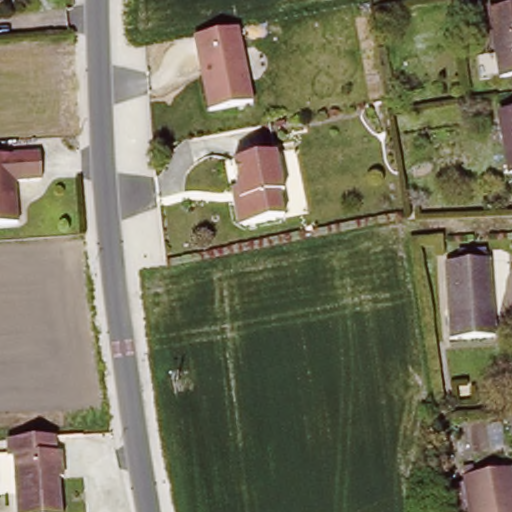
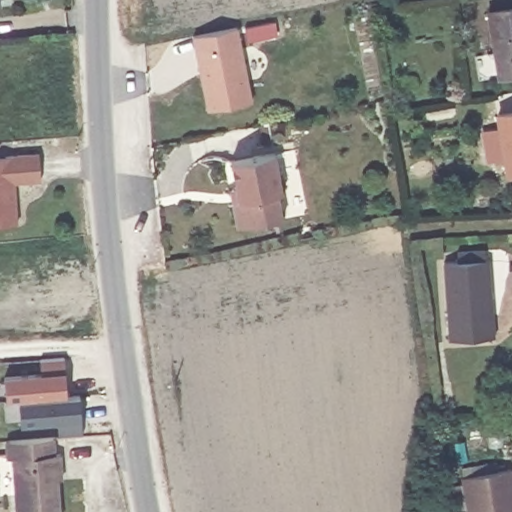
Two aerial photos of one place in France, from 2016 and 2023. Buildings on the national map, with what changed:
unchanged [(490,10),(512,6),(512,70),(500,72),(490,10)]
unchanged [(235,31),(250,105),(208,114),(193,39),(235,31)]
unchanged [(497,116),(512,114),(512,176),(507,177),(497,116)]
unchanged [(40,178),(16,179),(19,221),(0,222),(0,154),(38,151),(40,178)]
unchanged [(233,191),(228,165),(270,158),(278,196),(274,197),(278,222),(242,230),(231,221),(230,213),(225,192),(233,191)]
unchanged [(494,339),(448,340),(448,317),(452,317),(450,264),(462,264),(462,253),(489,252),(488,263),(492,263),(494,339)]
new [(42,372),(40,358),(65,357),(67,372),(70,397),(81,397),(82,434),(58,436),(57,422),(22,423),(20,398),(7,399),(5,375),(42,372)]
unchanged [(53,456),(59,456),(60,472),(56,472),(58,512),(14,512),(10,457),(5,457),(4,441),(21,440),(52,437),(53,456)]
unchanged [(462,482),(510,473),(512,482),(512,512),(468,512),(462,482)]

